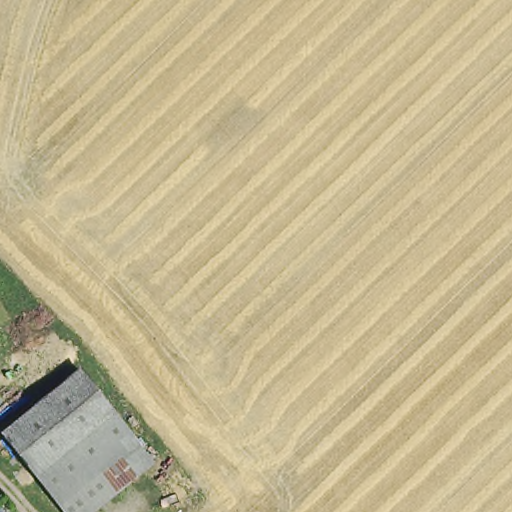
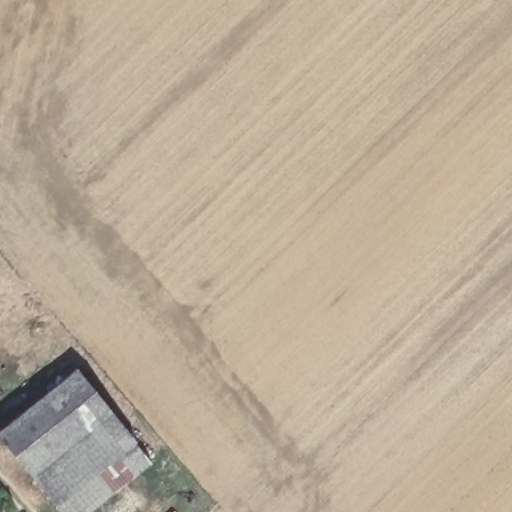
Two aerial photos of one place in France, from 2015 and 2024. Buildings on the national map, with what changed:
unchanged [(0,430),(0,418),(73,362),(104,402),(26,462),(0,430)]
unchanged [(104,402),(160,476),(112,512),(63,512),(26,462),(104,402)]

